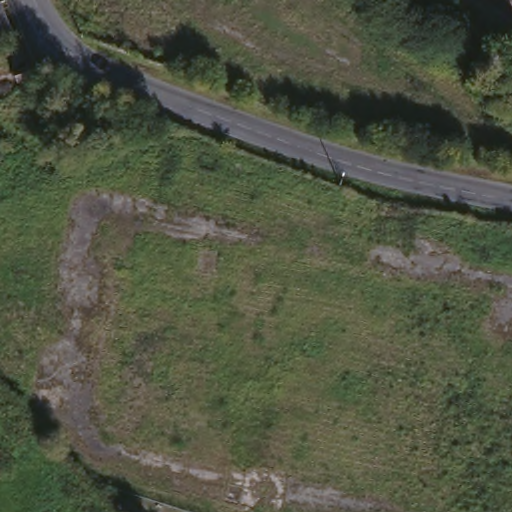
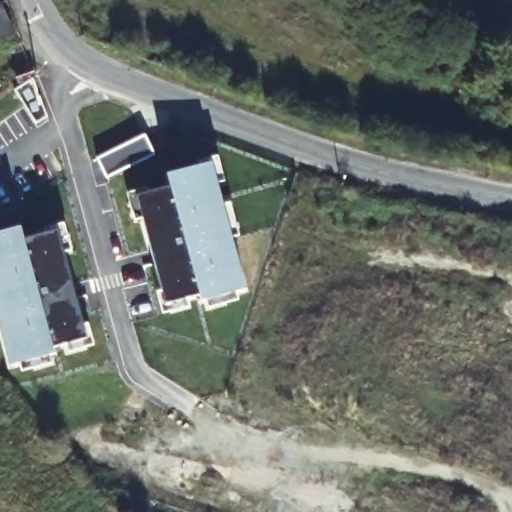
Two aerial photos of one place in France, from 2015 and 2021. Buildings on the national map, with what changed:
unchanged [(12,35),(0,40),(0,3),(12,35)]
unchanged [(30,65),(33,76),(19,85),(15,73),(30,65)]
new [(210,163),(245,290),(201,303),(199,296),(165,305),(133,196),(170,187),(166,174),(210,163)]
new [(18,229),(20,240),(55,231),(85,340),(51,348),(51,355),(9,365),(0,332),(0,234),(18,229)]

